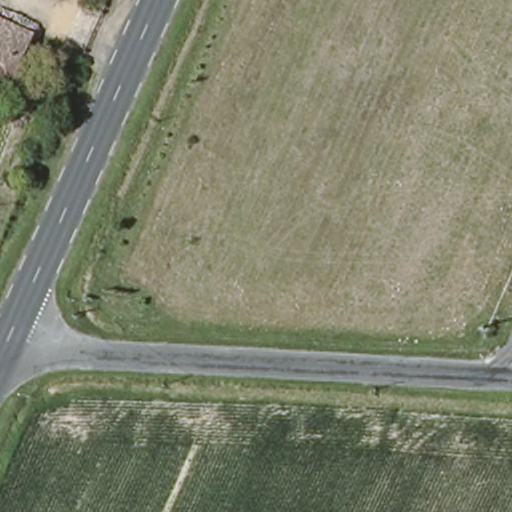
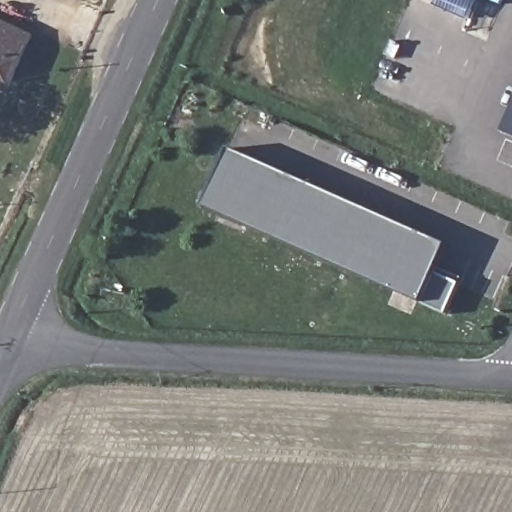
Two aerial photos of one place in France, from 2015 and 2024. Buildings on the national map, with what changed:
unchanged [(15,85),(0,79),(0,19),(37,35),(15,85)]
new [(512,125),(512,137),(507,135),(512,125)]
new [(235,153),(454,249),(442,277),(466,288),(452,318),(210,212),(235,153)]

